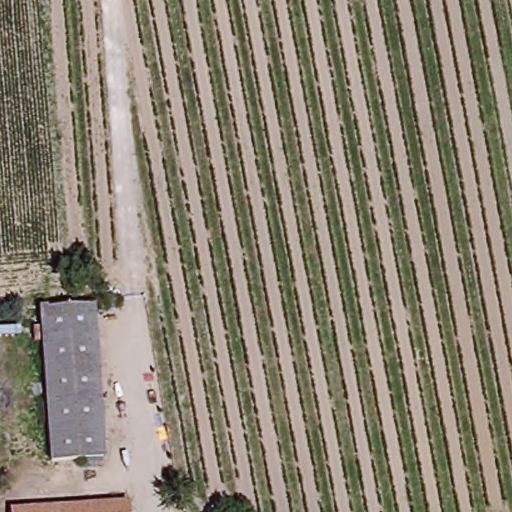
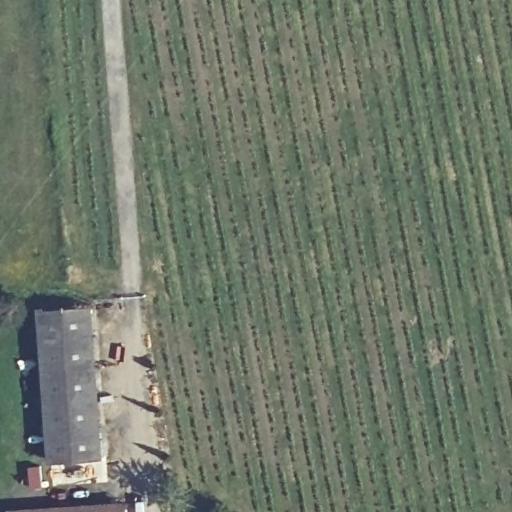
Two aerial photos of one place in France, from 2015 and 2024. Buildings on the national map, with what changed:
unchanged [(55,460),(43,310),(86,308),(95,307),(106,457),(98,458),(55,460)]
unchanged [(126,503),(126,512),(67,512),(67,503),(96,502),(126,503)]
unchanged [(9,512),(9,503),(67,503),(67,512),(9,512)]

